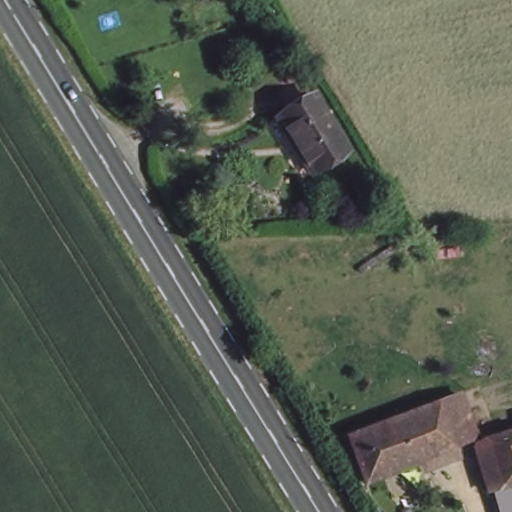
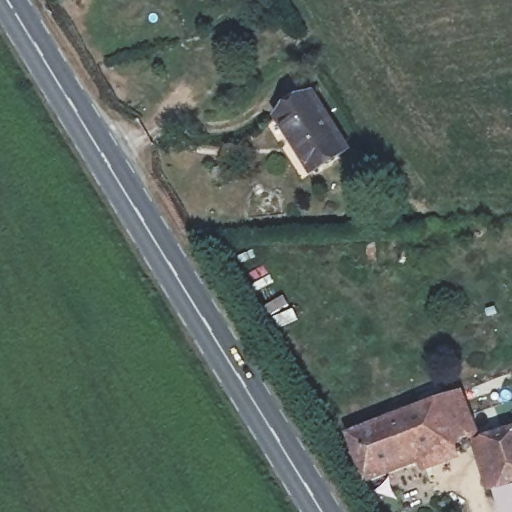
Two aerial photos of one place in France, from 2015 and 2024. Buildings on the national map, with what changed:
unchanged [(281,147),(267,126),(313,95),(348,149),(314,172),(293,140),(281,147)]
unchanged [(477,432),(467,438),(472,450),(374,489),(355,440),(467,395),(477,432)]
unchanged [(502,492),(490,497),(485,485),(495,480),(489,462),(480,466),(474,449),(512,433),(512,489),(502,492)]
unchanged [(502,492),(512,489),(512,512),(507,512),(502,492)]

